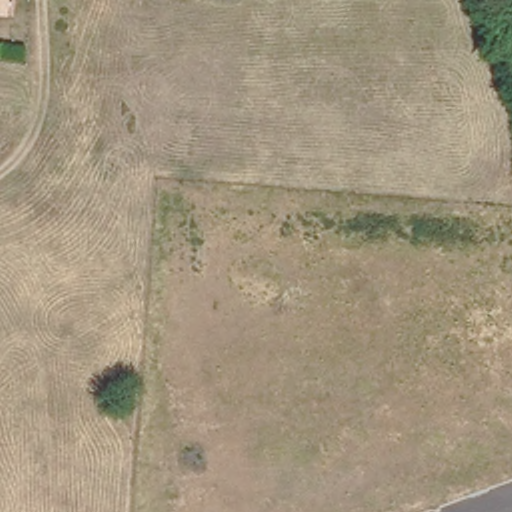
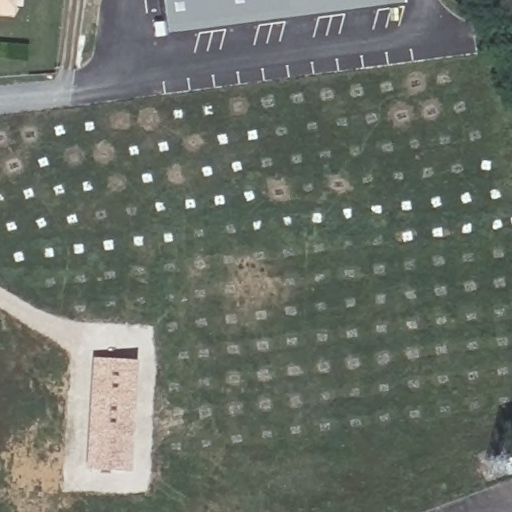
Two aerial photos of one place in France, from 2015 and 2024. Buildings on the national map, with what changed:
unchanged [(0,13),(0,0),(7,0),(7,2),(6,13),(0,13)]
new [(402,3),(162,34),(158,0),(402,0),(402,3)]
new [(84,468),(92,356),(136,359),(128,471),(84,468)]

